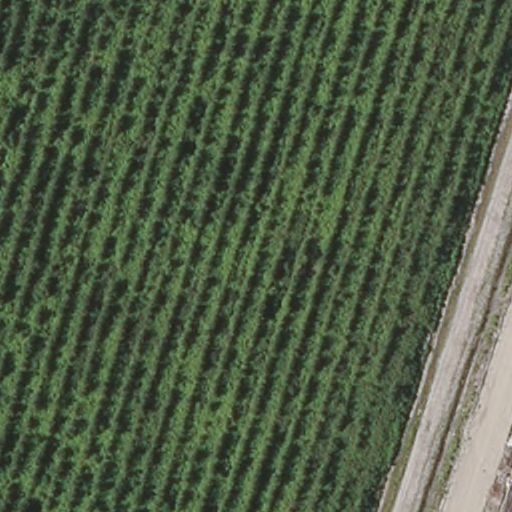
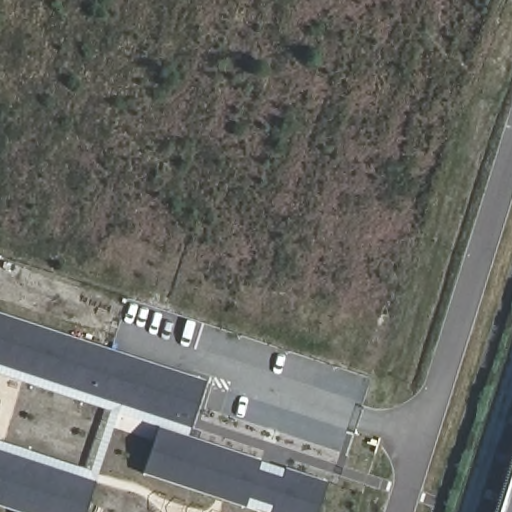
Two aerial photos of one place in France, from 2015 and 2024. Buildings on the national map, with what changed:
new [(191,427),(0,364),(0,313),(210,381),(191,427)]
new [(331,484),(321,512),(263,512),(148,474),(163,427),(331,484)]
new [(87,512),(22,512),(0,505),(0,450),(96,483),(87,512)]
new [(512,470),(512,512),(499,512),(512,470)]

